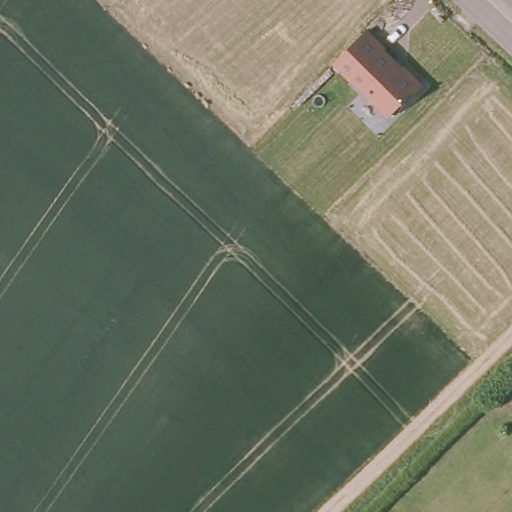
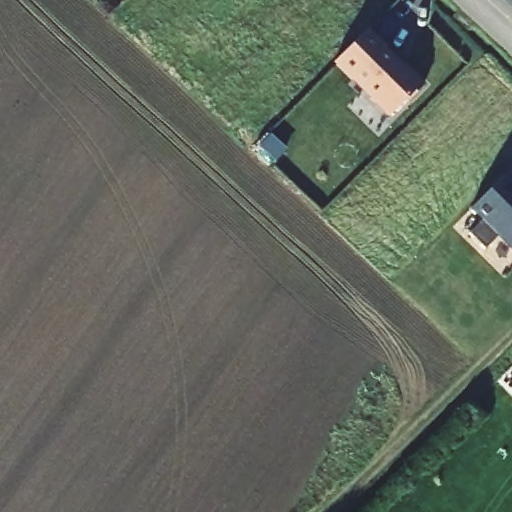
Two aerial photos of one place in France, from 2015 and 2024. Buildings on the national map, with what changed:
unchanged [(423,87),(389,119),(332,64),(367,27),(423,87)]
new [(483,248),(467,233),(480,220),(470,211),(507,172),(512,176),(512,252),(495,236),(483,248)]

